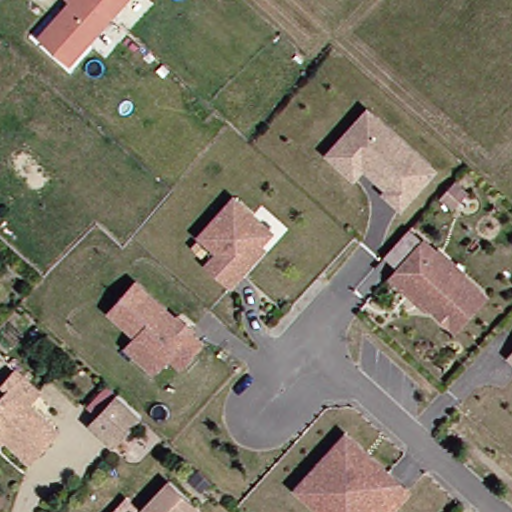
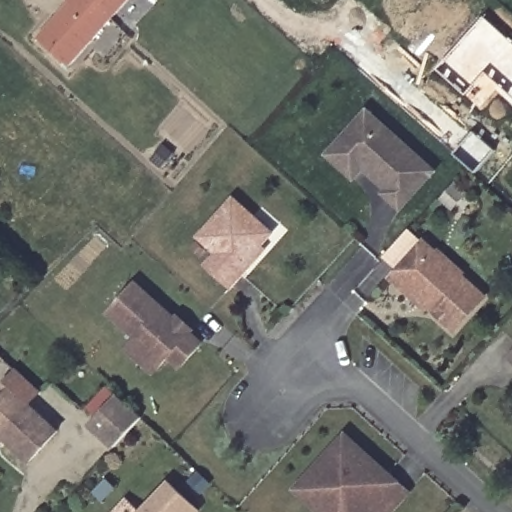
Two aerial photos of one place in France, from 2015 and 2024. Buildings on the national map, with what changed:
unchanged [(65,0),(125,0),(65,61),(34,31),(65,0)]
new [(467,95),(438,68),(486,15),(512,39),(512,95),(488,72),(467,95)]
unchanged [(334,140),(364,106),(403,141),(431,166),(398,204),(382,189),(385,185),(374,175),(360,164),(351,174),(325,150),(334,140)]
new [(475,171),(455,154),(475,130),(496,150),(475,171)]
unchanged [(231,196),(270,229),(239,267),(243,271),(232,285),(207,264),(218,251),(198,235),(231,196)]
unchanged [(396,268),(421,240),(434,252),(457,275),(481,296),(451,328),(426,305),(423,308),(389,276),(396,268)]
unchanged [(135,335),(108,310),(135,280),(175,317),(178,315),(191,326),(188,329),(201,340),(179,365),(168,354),(163,360),(153,370),(125,345),(135,335)]
unchanged [(512,354),(512,357),(510,355),(512,354)]
unchanged [(8,387),(1,381),(12,370),(37,391),(26,403),(57,431),(28,462),(0,435),(0,397),(8,387)]
unchanged [(108,388),(130,408),(103,438),(80,417),(108,388)]
unchanged [(300,492),(293,486),(343,431),(386,470),(384,473),(405,491),(386,512),(375,512),(371,508),(367,512),(321,512),(300,492)]
unchanged [(158,477),(190,508),(187,512),(127,512),(158,477)]

